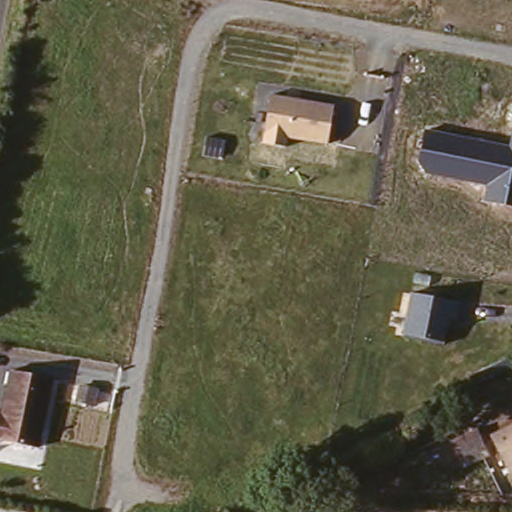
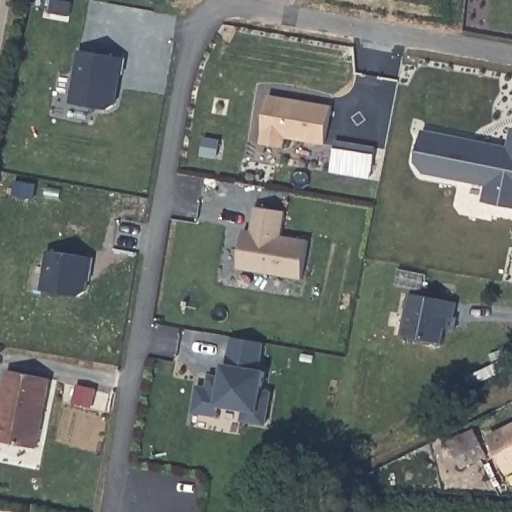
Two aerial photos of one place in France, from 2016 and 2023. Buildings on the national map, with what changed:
new [(125,58),(115,111),(73,104),(82,51),(125,58)]
unchanged [(262,142),(271,96),(333,106),(327,144),(287,137),(286,146),(262,142)]
unchanged [(483,199),(486,185),(427,175),(418,159),(425,132),(510,146),(512,136),(512,204),(483,199)]
new [(287,212),(283,236),(311,240),(304,279),(241,269),(246,229),(252,230),(256,207),(287,212)]
new [(96,258),(90,289),(81,296),(41,290),(48,251),(96,258)]
unchanged [(410,293),(452,301),(445,342),(404,334),(410,293)]
new [(208,385),(210,374),(224,375),(226,363),(231,364),(235,339),(267,344),(262,371),(270,373),(267,391),(274,393),(268,424),(242,420),(244,413),(221,409),(219,418),(195,413),(199,385),(208,385)]
unchanged [(42,449),(0,444),(0,416),(2,416),(11,373),(56,381),(42,449)]
unchanged [(512,425),(512,477),(511,478),(491,435),(512,425)]

